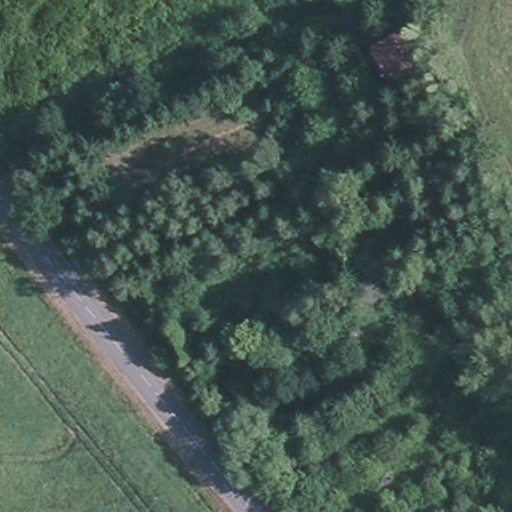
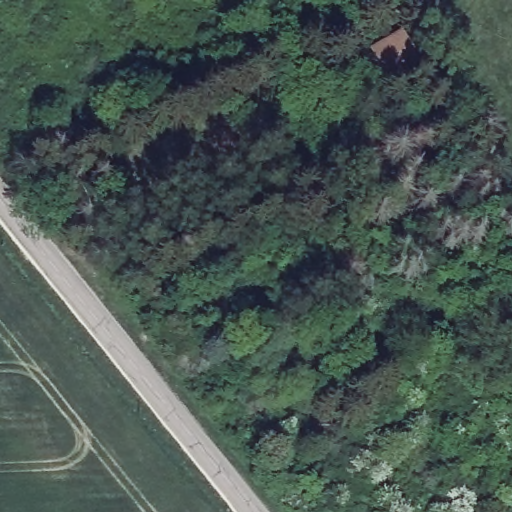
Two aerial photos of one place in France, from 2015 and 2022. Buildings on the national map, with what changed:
unchanged [(416,60),(386,79),(366,45),(398,26),(416,60)]

